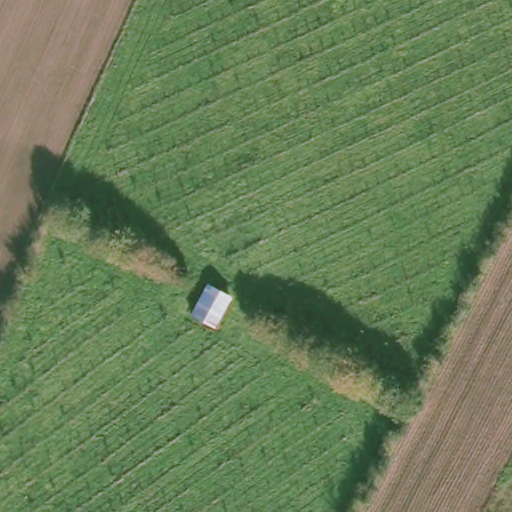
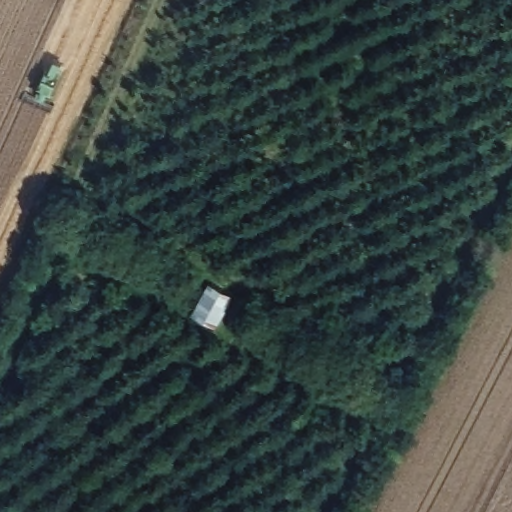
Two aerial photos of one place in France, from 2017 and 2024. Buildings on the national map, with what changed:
unchanged [(231,292),(215,327),(188,313),(201,280),(231,292)]

